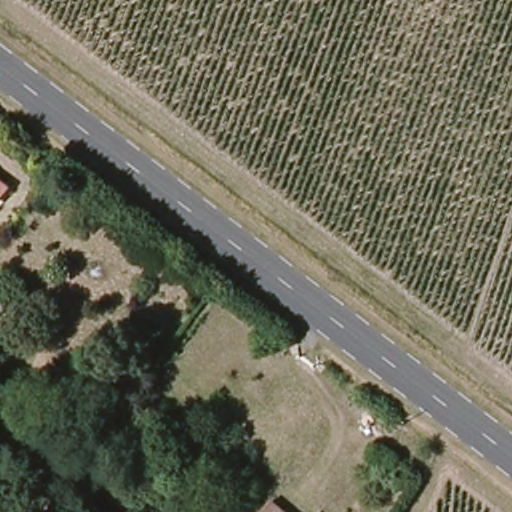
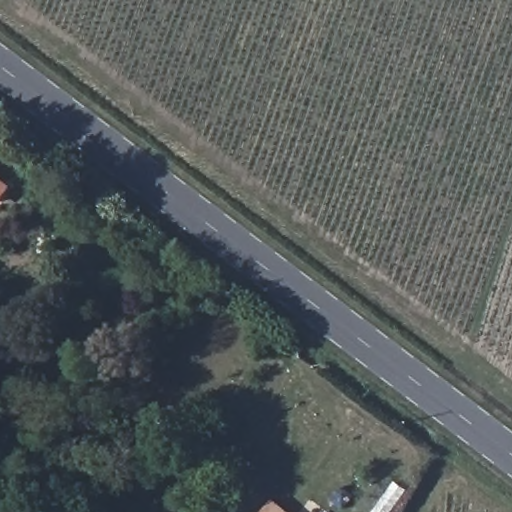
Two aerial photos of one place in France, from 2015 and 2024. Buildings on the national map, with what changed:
unchanged [(0,198),(0,179),(9,185),(0,198)]
unchanged [(300,511),(301,512),(260,512),(276,492),(300,511)]

